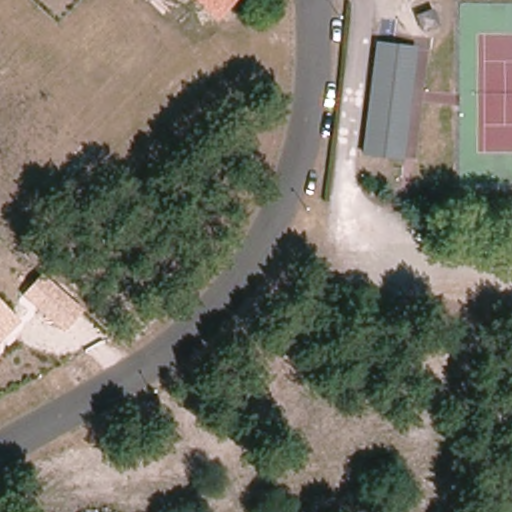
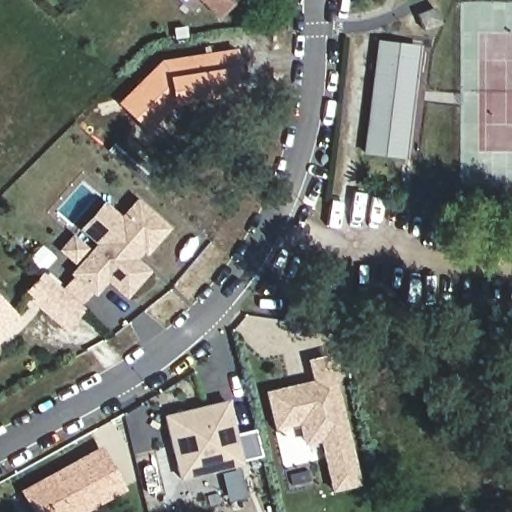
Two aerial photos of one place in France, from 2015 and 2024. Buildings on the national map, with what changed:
unchanged [(195,0),(235,0),(217,20),(195,0)]
unchanged [(432,9),(440,24),(422,31),(416,15),(432,9)]
new [(160,60),(236,48),(240,89),(177,98),(146,133),(116,102),(160,60)]
unchanged [(403,145),(366,140),(377,49),(415,54),(403,145)]
new [(135,195),(170,226),(145,254),(142,252),(139,257),(151,269),(125,297),(107,281),(94,293),(70,272),(95,242),(79,227),(104,199),(120,214),(135,195)]
unchanged [(65,330),(21,292),(41,269),(85,307),(65,330)]
unchanged [(0,297),(22,319),(0,342),(0,297)]
new [(307,360),(328,354),(360,483),(332,489),(320,440),(303,444),(297,423),(273,429),(264,391),(312,378),(307,360)]
new [(235,433),(254,428),(260,453),(241,458),(242,463),(179,479),(162,414),(227,398),(235,433)]
new [(96,452),(114,485),(67,511),(67,512),(35,512),(24,492),(96,452)]

